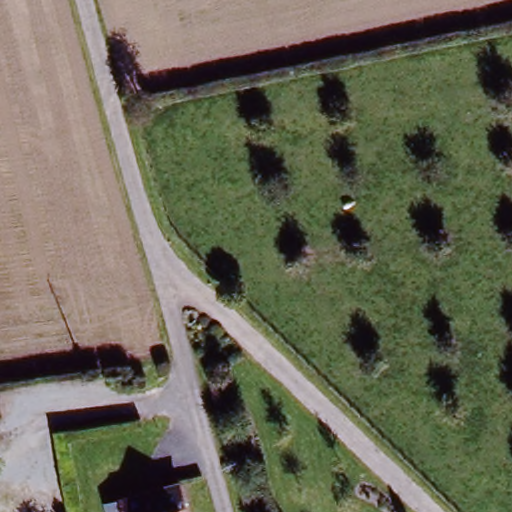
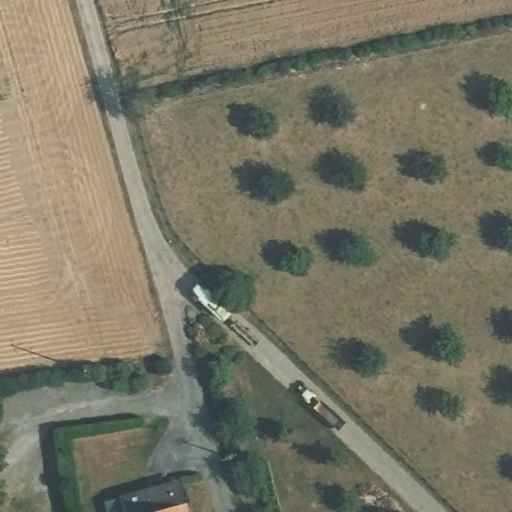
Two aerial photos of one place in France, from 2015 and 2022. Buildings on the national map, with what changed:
unchanged [(109,512),(107,503),(120,500),(178,483),(186,512),(109,512)]

